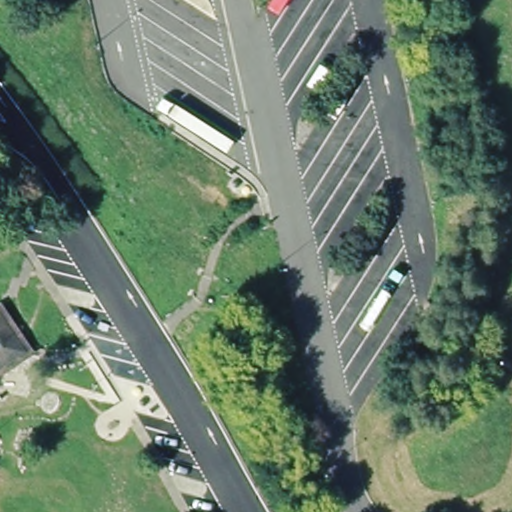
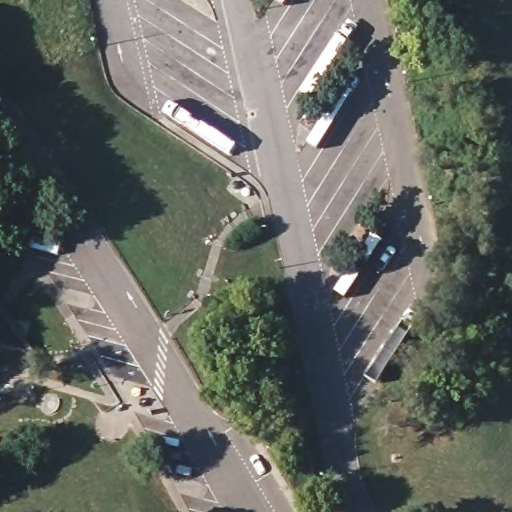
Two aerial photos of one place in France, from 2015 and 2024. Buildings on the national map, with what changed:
unchanged [(5,303),(37,351),(0,375),(0,307),(5,303)]

